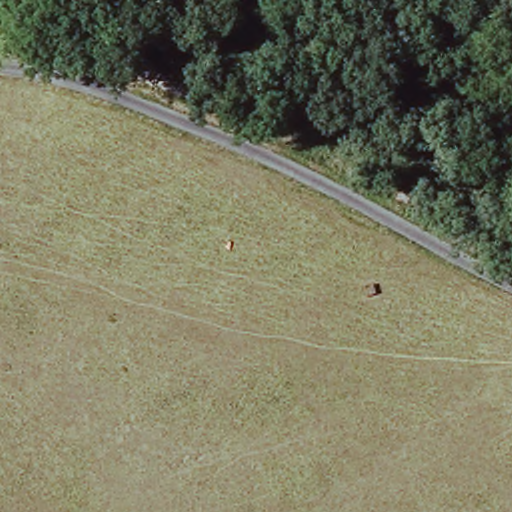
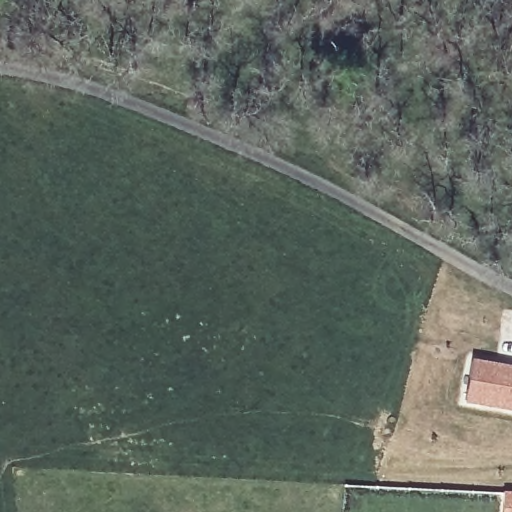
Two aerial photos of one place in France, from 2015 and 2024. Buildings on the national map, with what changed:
new [(512,366),(512,411),(464,403),(472,360),(512,366)]
new [(512,492),(512,512),(502,512),(503,492),(512,492)]

